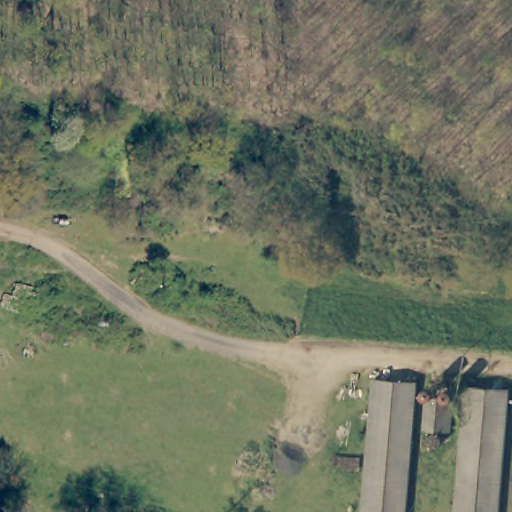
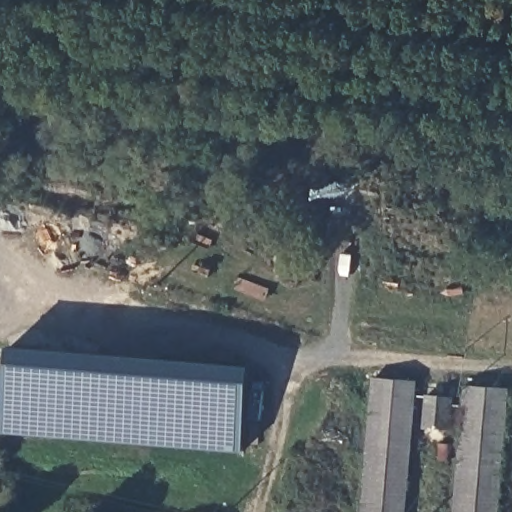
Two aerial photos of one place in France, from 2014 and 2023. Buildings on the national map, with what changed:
new [(253,366),(245,453),(6,432),(10,345),(253,366)]
unchanged [(417,384),(406,512),(364,512),(374,380),(417,384)]
unchanged [(509,391),(499,512),(456,512),(466,388),(509,391)]
unchanged [(456,395),(452,433),(422,431),(427,393),(456,395)]

